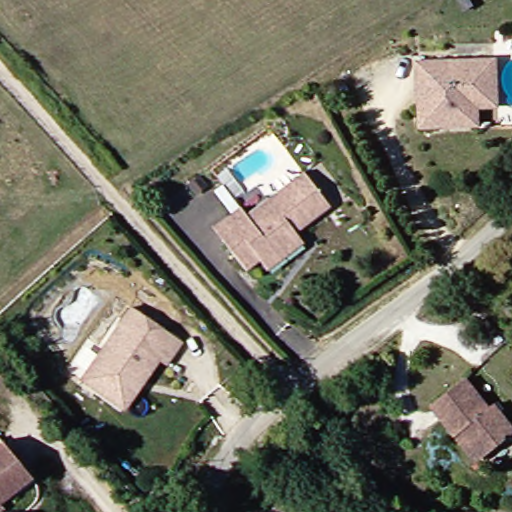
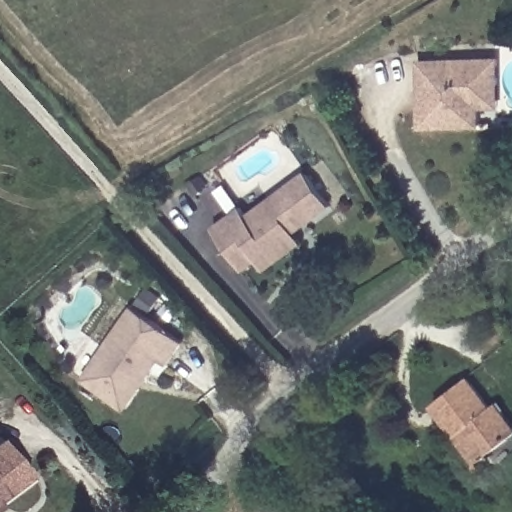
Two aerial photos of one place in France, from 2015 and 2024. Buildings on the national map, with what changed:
unchanged [(483,126),(425,128),(423,59),(499,58),(500,83),(500,103),(486,103),(482,103),(483,126)]
unchanged [(270,269),(264,260),(250,270),(217,224),(246,204),(252,212),(310,171),(336,208),(303,232),(309,241),(270,269)]
unchanged [(113,402),(84,380),(68,369),(91,336),(107,348),(136,307),(182,339),(167,364),(163,361),(127,412),(113,402)]
unchanged [(437,405),(475,378),(498,410),(504,405),(512,417),(512,442),(489,459),(482,464),(461,437),(437,405)]
unchanged [(0,507),(0,448),(10,441),(36,478),(0,507)]

